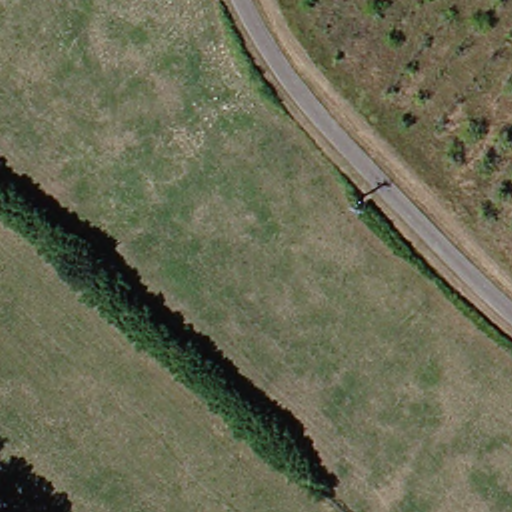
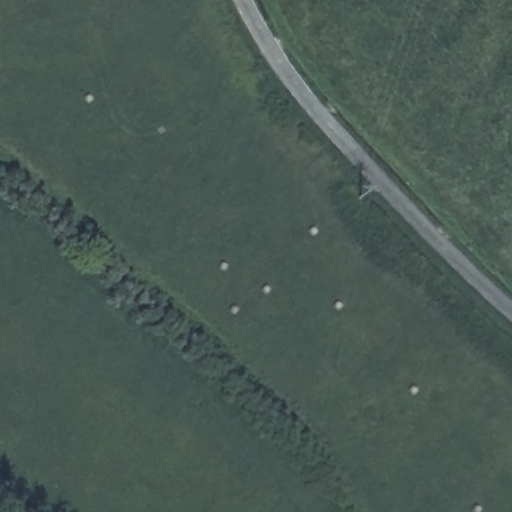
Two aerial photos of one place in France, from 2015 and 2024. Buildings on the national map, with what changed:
[]

